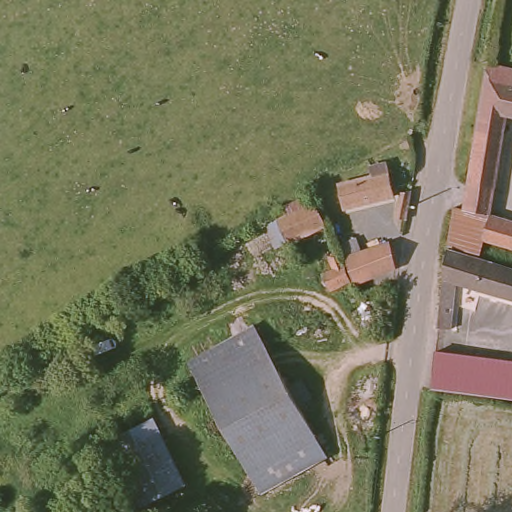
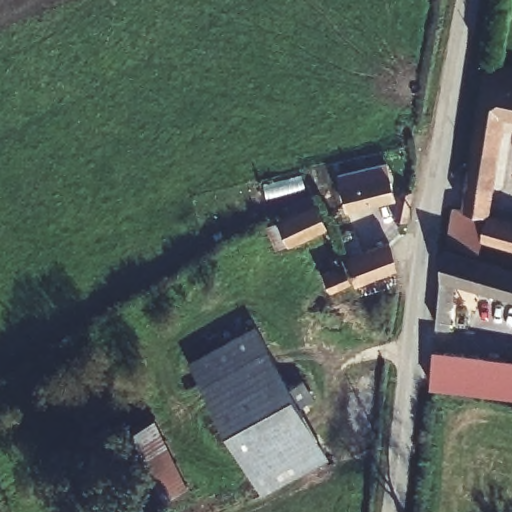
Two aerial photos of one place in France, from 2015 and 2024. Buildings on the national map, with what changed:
unchanged [(444,251),(451,208),(463,210),(468,184),(472,159),(489,63),(512,68),(512,114),(506,112),(491,189),(486,215),(512,222),(512,248),(479,239),(474,260),(444,251)]
unchanged [(337,199),(330,175),(379,162),(384,186),(337,199)]
unchanged [(399,210),(388,211),(390,185),(402,182),(399,210)]
unchanged [(323,225),(286,241),(274,217),(283,212),(279,205),(308,192),(309,193),(323,225)]
unchanged [(397,265),(354,282),(344,260),(401,237),(397,265)]
unchanged [(474,260),(512,273),(512,301),(452,281),(449,328),(435,327),(438,291),(444,251),(474,260)]
unchanged [(328,291),(319,272),(330,267),(326,259),(336,254),(349,282),(328,291)]
unchanged [(329,456),(259,486),(198,373),(193,363),(191,361),(257,325),(258,327),(329,456)]
unchanged [(429,386),(433,350),(512,360),(512,398),(429,386)]
unchanged [(189,490),(143,510),(109,433),(156,413),(189,490)]

